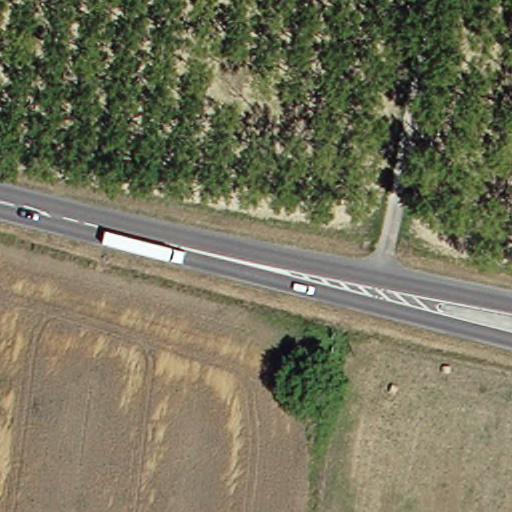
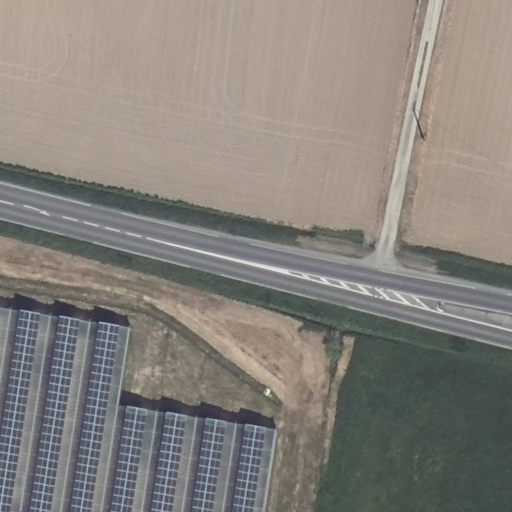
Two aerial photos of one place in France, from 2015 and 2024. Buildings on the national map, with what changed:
new [(0,512),(0,309),(130,329),(119,407),(276,432),(264,512),(0,512)]

